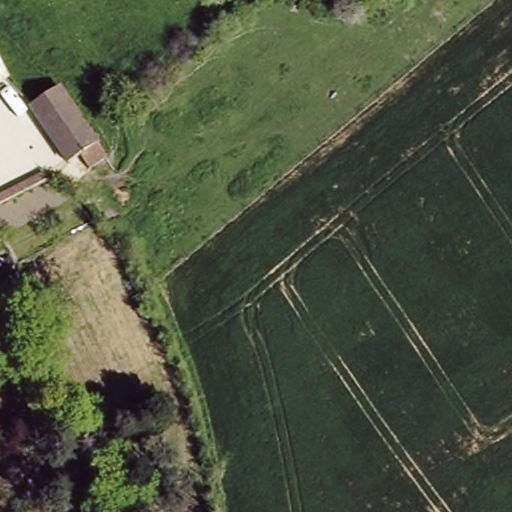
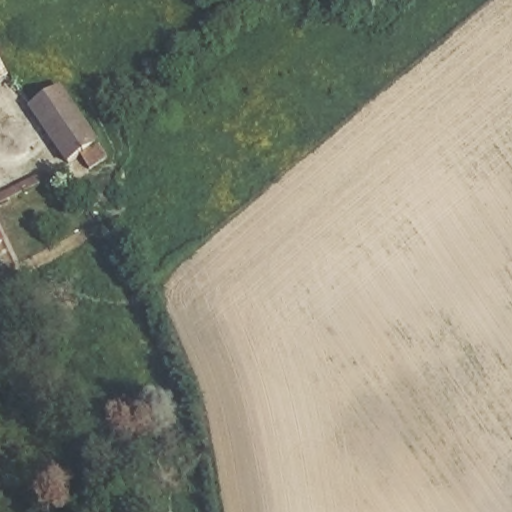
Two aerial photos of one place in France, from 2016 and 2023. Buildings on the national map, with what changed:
unchanged [(0,67),(7,78),(0,82),(0,67)]
unchanged [(71,163),(45,123),(33,106),(63,87),(74,105),(72,106),(97,146),(71,163)]
unchanged [(0,194),(45,172),(48,179),(0,203),(0,194)]
unchanged [(0,244),(0,224),(7,240),(0,244)]

